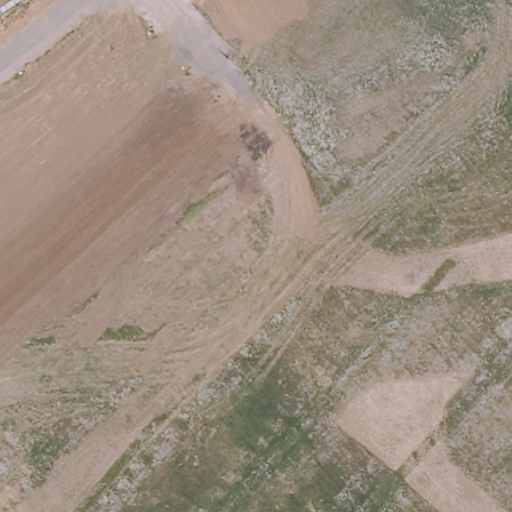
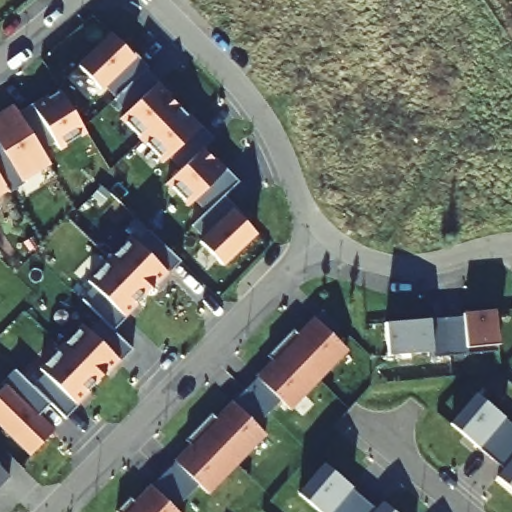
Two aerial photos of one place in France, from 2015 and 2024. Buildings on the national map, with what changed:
new [(112,34),(134,56),(109,80),(121,93),(116,97),(104,85),(101,89),(79,67),(112,34)]
new [(121,93),(146,70),(211,141),(203,149),(182,169),(169,156),(164,162),(121,118),(128,112),(114,99),(116,97),(121,93)]
new [(58,92),(84,133),(58,150),(53,143),(39,152),(18,117),(58,92)]
new [(0,150),(0,115),(12,107),(18,117),(39,152),(46,163),(21,180),(23,183),(8,194),(5,190),(0,194),(0,151),(0,150)]
new [(225,171),(203,193),(214,205),(223,197),(254,233),(222,265),(201,243),(204,239),(193,225),(207,212),(196,200),(189,205),(168,183),(182,169),(203,149),(225,171)]
new [(109,329),(99,320),(80,301),(91,289),(85,283),(128,239),(134,244),(147,232),(176,261),(109,329)]
new [(282,400),(258,426),(265,433),(207,493),(198,484),(176,508),(179,512),(118,512),(131,497),(136,502),(193,443),(188,438),(213,412),(218,419),(233,405),(274,361),(269,354),(294,328),(300,334),(324,310),(341,326),(333,335),(349,350),(291,408),(282,400)]
new [(496,313),(500,355),(432,360),(431,353),(389,355),(386,324),(496,313)]
new [(60,417),(50,407),(43,399),(31,388),(43,377),(37,371),(80,326),(86,332),(99,320),(109,329),(128,348),(60,417)]
new [(51,432),(29,456),(0,427),(0,389),(1,387),(0,386),(0,384),(13,371),(31,388),(43,399),(30,412),(51,432)]
new [(512,423),(512,489),(497,476),(505,470),(454,424),(478,393),(512,423)]
new [(375,512),(319,512),(299,496),(326,465),(375,512)]
new [(0,485),(0,471),(7,478),(0,485)]
new [(393,512),(377,512),(385,505),(393,512)]

